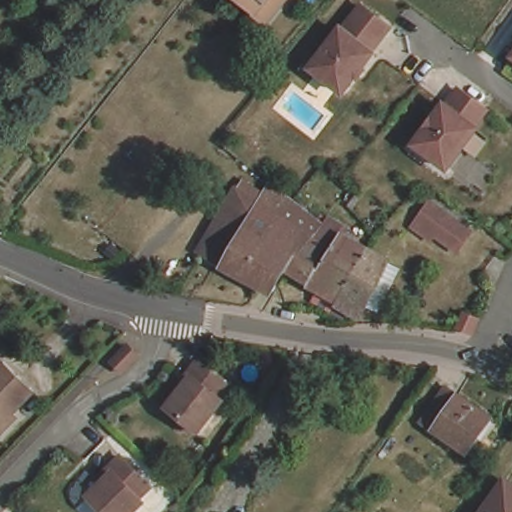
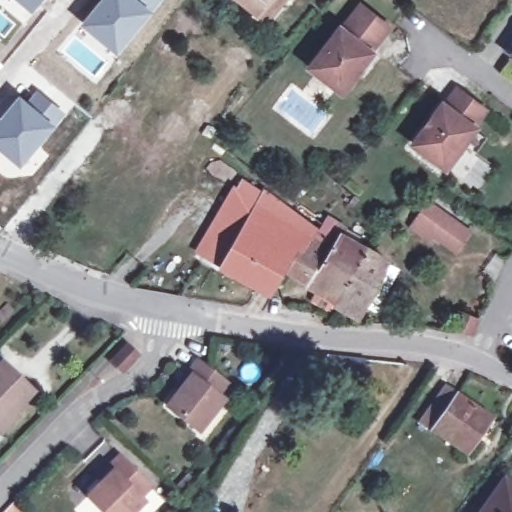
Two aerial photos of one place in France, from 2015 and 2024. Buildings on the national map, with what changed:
new [(29,9),(19,0),(37,0),(29,9)]
new [(100,0),(141,0),(153,10),(115,51),(81,23),(100,0)]
new [(153,10),(141,0),(162,0),(153,10)]
unchanged [(276,5),(263,21),(251,10),(253,8),(244,0),(281,0),(276,5)]
unchanged [(341,28),(343,29),(361,6),(389,27),(371,50),(373,52),(343,92),(311,67),(341,28)]
new [(27,98),(37,87),(65,111),(20,164),(0,148),(0,116),(20,92),(27,98)]
unchanged [(414,144),(444,104),(446,106),(458,90),(486,110),(474,126),(476,128),(447,168),(414,144)]
unchanged [(341,307),(323,297),(328,289),(319,284),(294,270),(289,277),(283,274),(271,295),(207,258),(203,256),(213,239),(232,205),(239,194),(261,207),(274,187),(296,204),(328,228),(331,223),(338,227),(350,233),(346,240),(371,254),(341,307)]
unchanged [(428,203),(469,233),(457,250),(435,234),(431,240),(412,226),(428,203)]
unchanged [(392,265),(368,311),(363,308),(358,318),(339,309),(340,308),(341,307),(371,254),(392,265)]
unchanged [(462,312),(477,320),(471,334),(456,327),(455,327),(462,312)]
unchanged [(115,365),(112,361),(128,345),(136,354),(121,369),(115,365)]
unchanged [(0,426),(0,363),(2,361),(33,390),(0,426)]
unchanged [(219,400),(198,429),(168,406),(189,379),(185,375),(196,361),(224,382),(214,396),(219,400)]
unchanged [(501,422),(477,457),(432,426),(456,391),(501,422)]
unchanged [(138,509),(141,512),(97,512),(89,505),(102,491),(98,487),(106,478),(128,454),(159,484),(138,509)]
unchanged [(512,485),(512,512),(490,512),(510,483),(512,485)]

